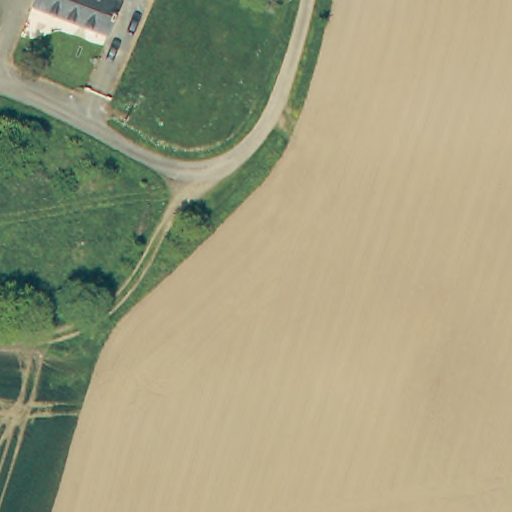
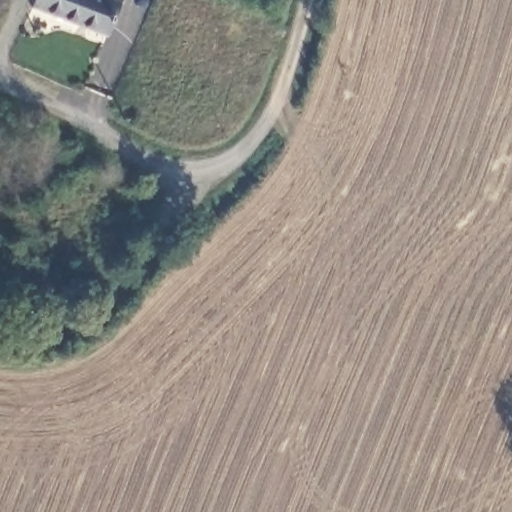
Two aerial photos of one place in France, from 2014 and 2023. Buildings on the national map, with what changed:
unchanged [(113,0),(114,1),(110,10),(107,21),(102,33),(31,5),(33,0),(113,0)]

